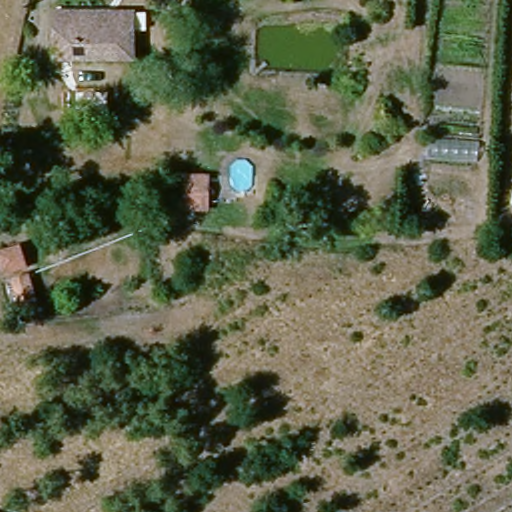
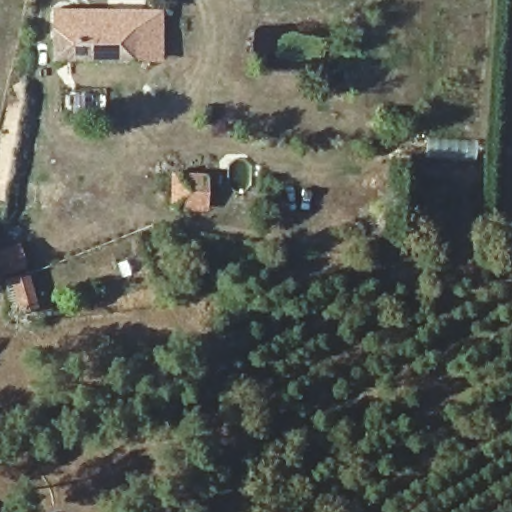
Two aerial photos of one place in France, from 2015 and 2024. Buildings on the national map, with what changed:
new [(162,61),(132,59),(131,12),(162,9),(162,61)]
unchanged [(131,12),(132,59),(51,58),(51,10),(52,10),(131,12)]
unchanged [(205,180),(205,212),(173,211),(174,178),(205,180)]
unchanged [(17,246),(23,265),(3,271),(0,260),(0,251),(17,246)]
unchanged [(22,310),(13,281),(27,276),(36,307),(22,310)]

